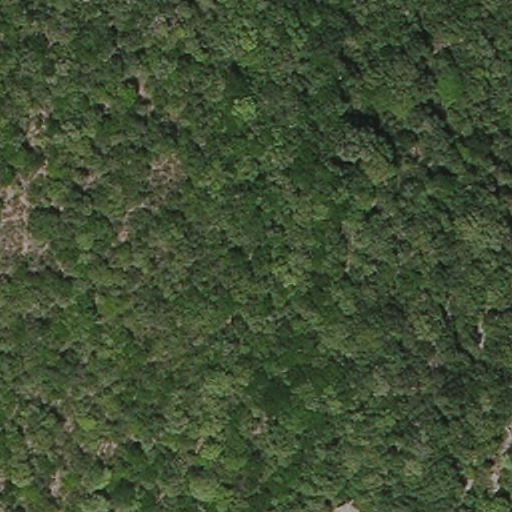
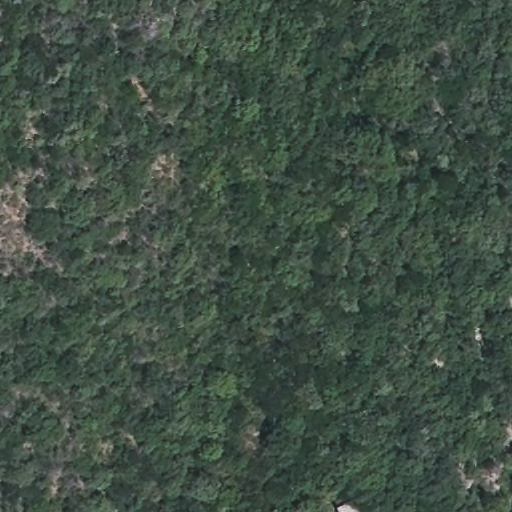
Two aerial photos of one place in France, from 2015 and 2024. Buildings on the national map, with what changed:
unchanged [(341,512),(339,510),(360,493),(367,512),(341,512)]

